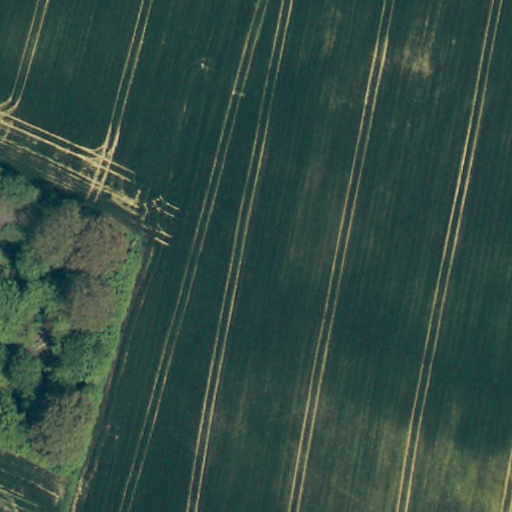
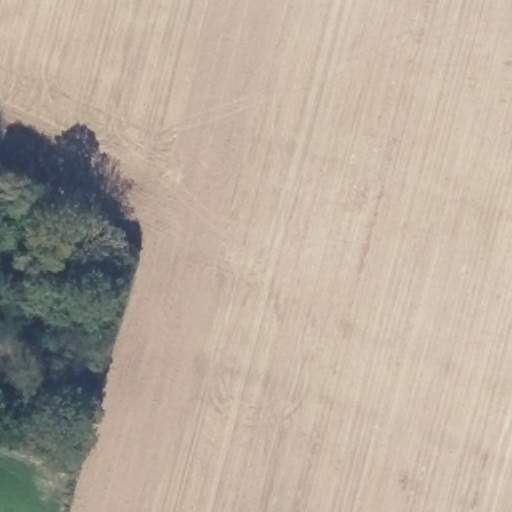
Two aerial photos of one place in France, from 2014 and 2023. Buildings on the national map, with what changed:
unchanged [(32,213),(21,238),(0,228),(0,200),(32,213)]
unchanged [(52,219),(100,239),(88,264),(66,253),(69,248),(52,249),(42,244),(52,219)]

